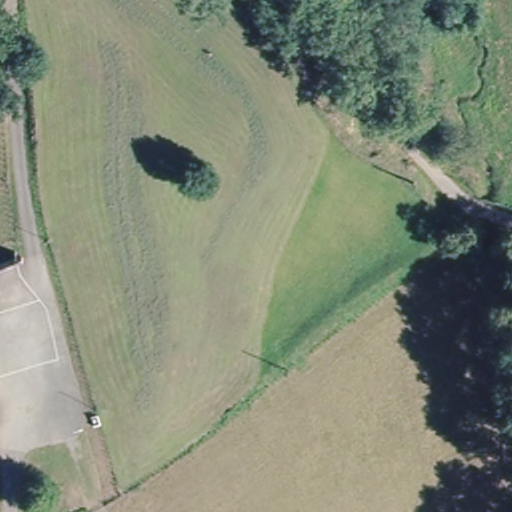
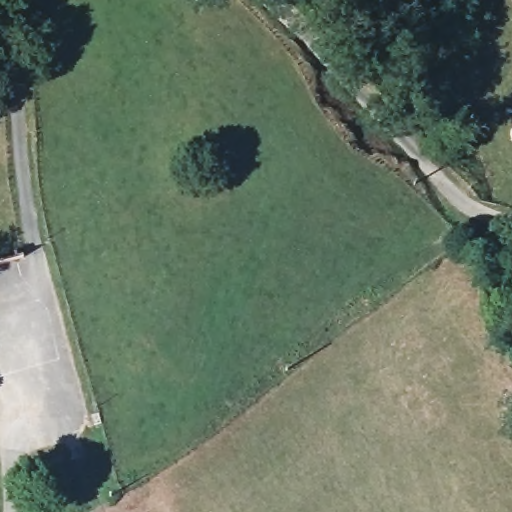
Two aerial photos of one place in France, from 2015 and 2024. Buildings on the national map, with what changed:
unchanged [(9,226),(17,245),(0,250),(0,229),(9,226)]

